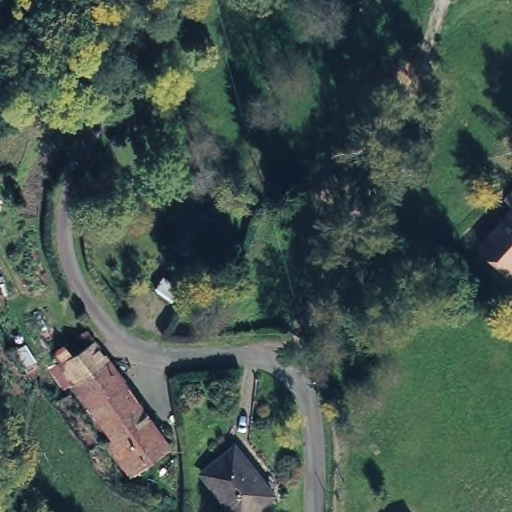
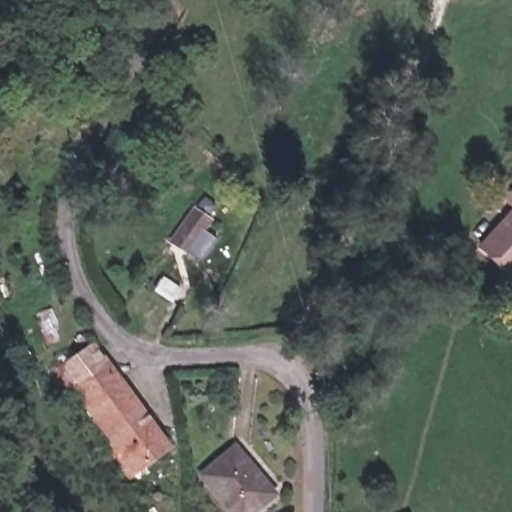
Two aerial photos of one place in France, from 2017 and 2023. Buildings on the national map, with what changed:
unchanged [(509,205),(497,195),(512,183),(512,272),(476,239),(509,205)]
unchanged [(208,216),(183,257),(161,242),(185,202),(208,216)]
unchanged [(51,360),(80,337),(172,447),(142,464),(51,360)]
unchanged [(234,440),(275,491),(250,512),(224,512),(187,472),(234,440)]

